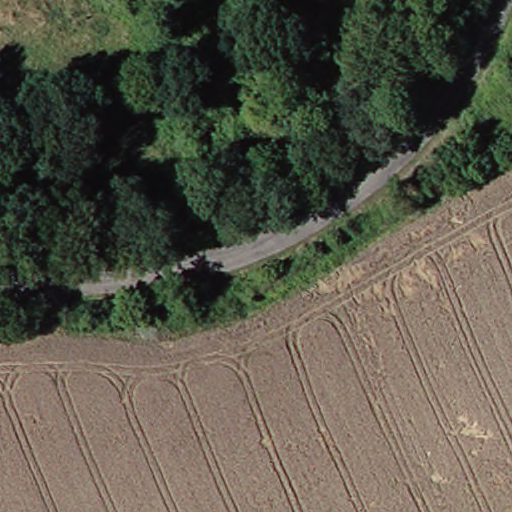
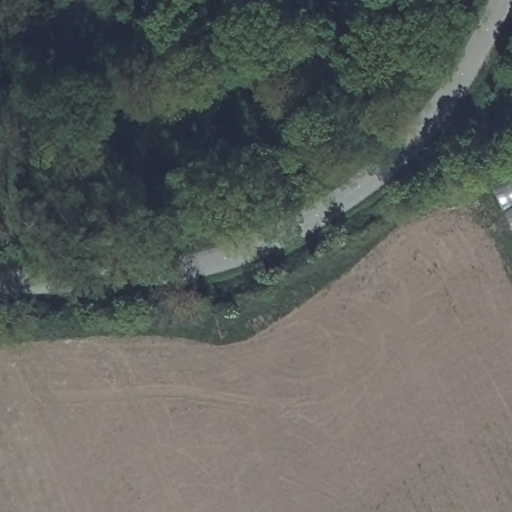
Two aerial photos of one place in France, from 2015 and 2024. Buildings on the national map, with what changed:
new [(494,186),(512,177),(512,224),(494,186)]

